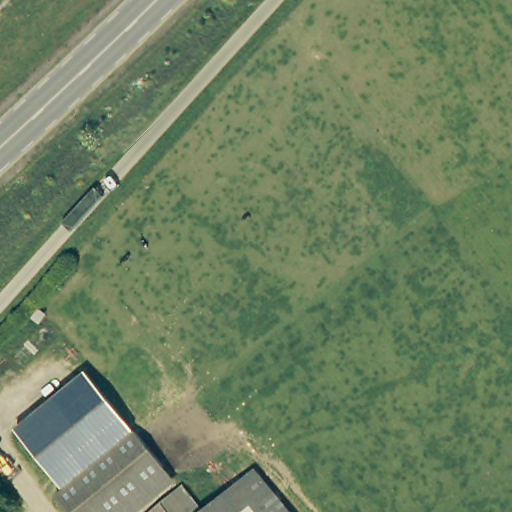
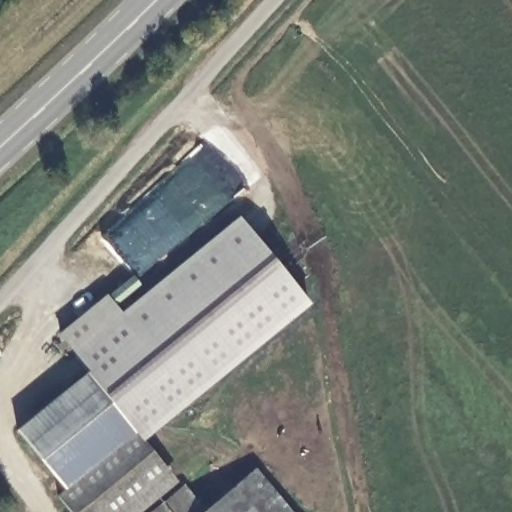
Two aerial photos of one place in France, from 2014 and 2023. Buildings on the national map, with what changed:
new [(57,334),(106,296),(120,312),(239,218),(309,302),(142,440),(87,375),(57,334)]
unchanged [(70,512),(58,498),(65,492),(17,433),(87,375),(169,472),(120,512),(70,512)]
unchanged [(285,512),(212,512),(254,475),(285,512)]
unchanged [(159,512),(184,492),(201,512),(159,512)]

